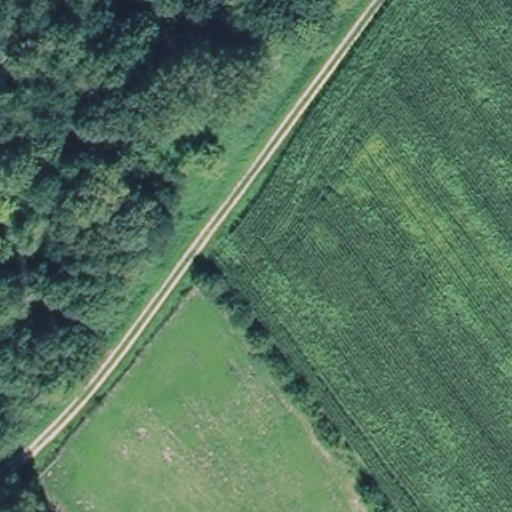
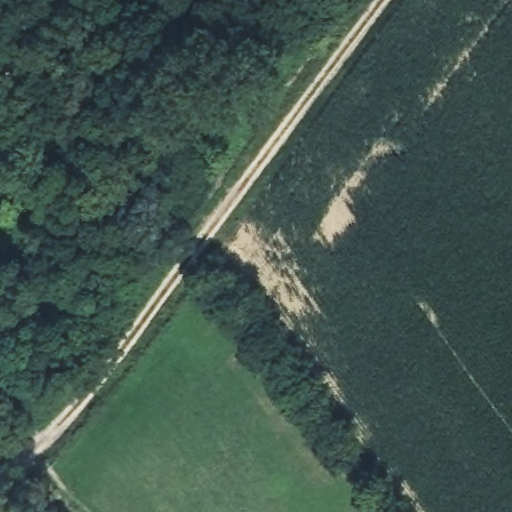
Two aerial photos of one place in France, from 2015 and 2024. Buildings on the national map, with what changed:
[]

